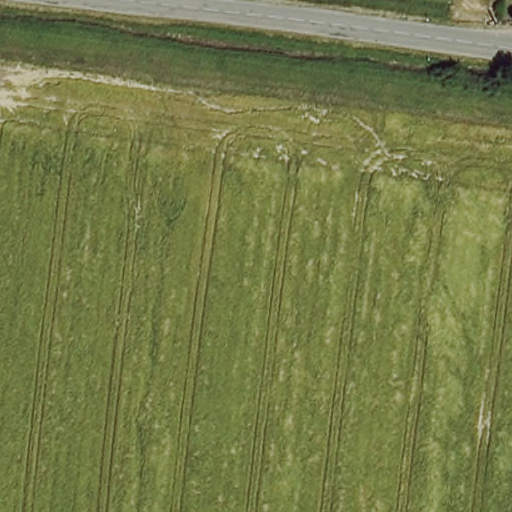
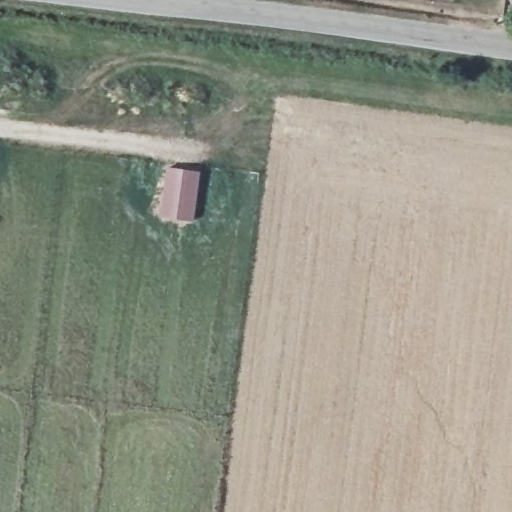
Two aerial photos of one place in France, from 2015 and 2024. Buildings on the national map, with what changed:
new [(165,166),(201,170),(194,222),(159,217),(165,166)]

